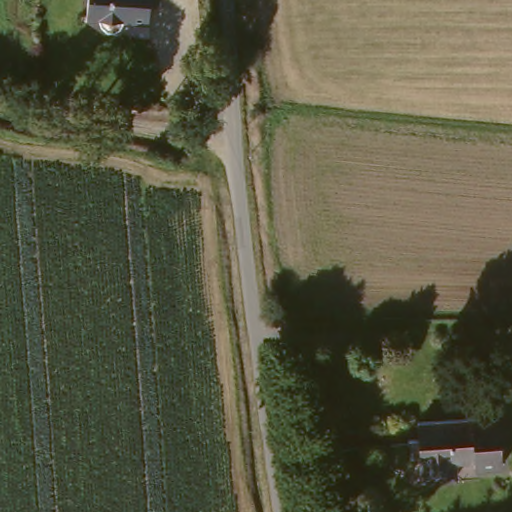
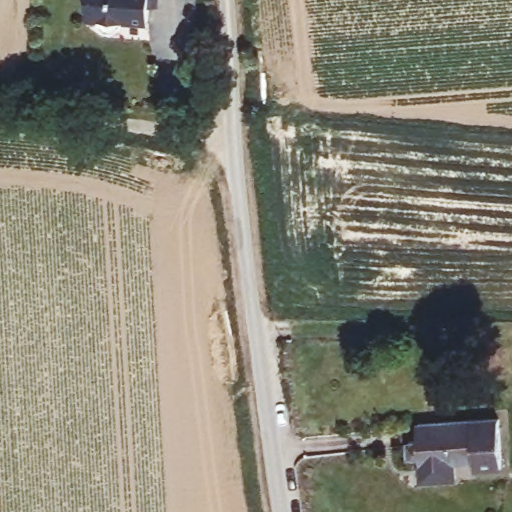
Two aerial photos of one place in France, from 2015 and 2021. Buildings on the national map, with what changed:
unchanged [(142,26),(117,23),(116,23),(116,24),(113,30),(108,34),(104,34),(101,33),(96,29),(93,21),(93,20),(81,20),(83,0),(144,0),(142,26)]
unchanged [(418,456),(416,448),(406,448),(405,431),(417,431),(416,415),(503,412),(503,463),(474,465),(474,455),(454,455),(454,469),(454,471),(418,472),(418,467),(418,456)]

